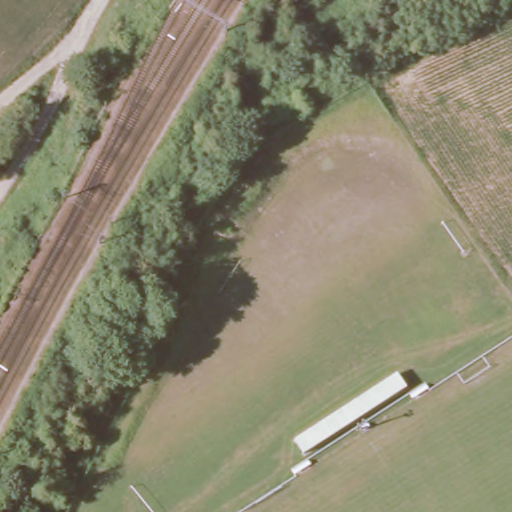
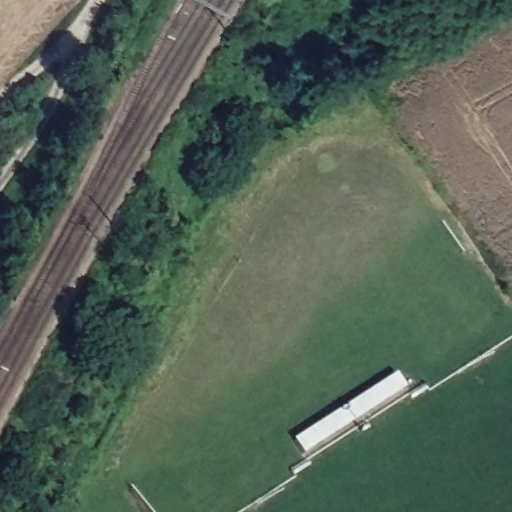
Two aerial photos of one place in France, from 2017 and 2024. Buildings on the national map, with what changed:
unchanged [(295,444),(401,376),(409,394),(303,459),(295,444)]

